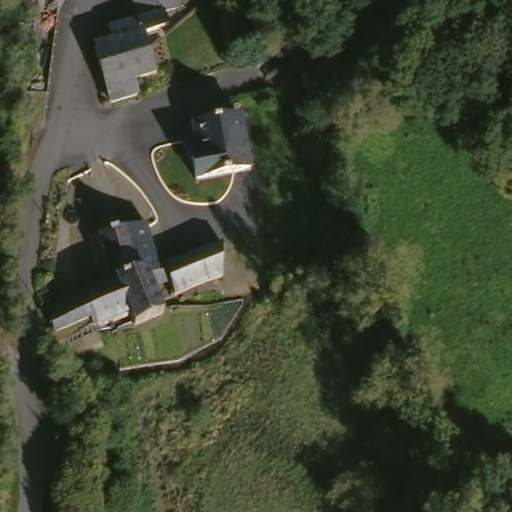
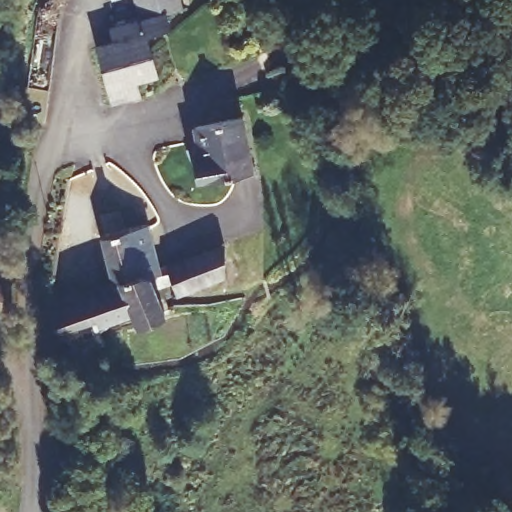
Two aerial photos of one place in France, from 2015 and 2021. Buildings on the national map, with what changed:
unchanged [(129,0),(181,0),(182,4),(134,16),(129,0)]
unchanged [(159,78),(136,84),(137,95),(108,102),(90,44),(134,30),(145,27),(159,78)]
unchanged [(250,170),(210,179),(199,175),(191,174),(188,156),(195,155),(191,127),(241,119),(250,170)]
unchanged [(174,254),(201,245),(195,229),(210,224),(221,220),(223,273),(184,286),(176,289),(173,279),(153,285),(161,309),(133,320),(129,311),(113,316),(86,326),(81,316),(76,318),(69,320),(53,326),(44,305),(116,280),(101,235),(107,232),(145,220),(158,260),(174,254)]

